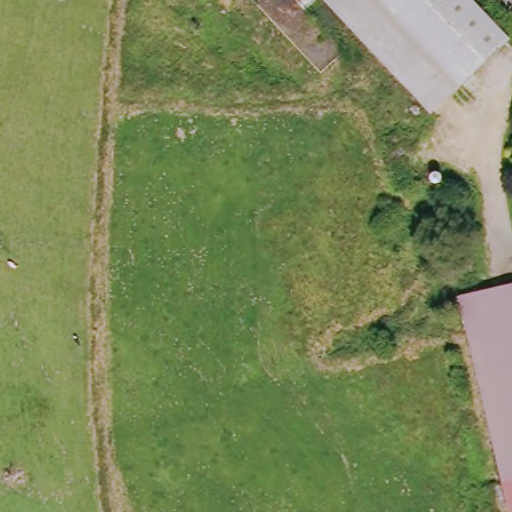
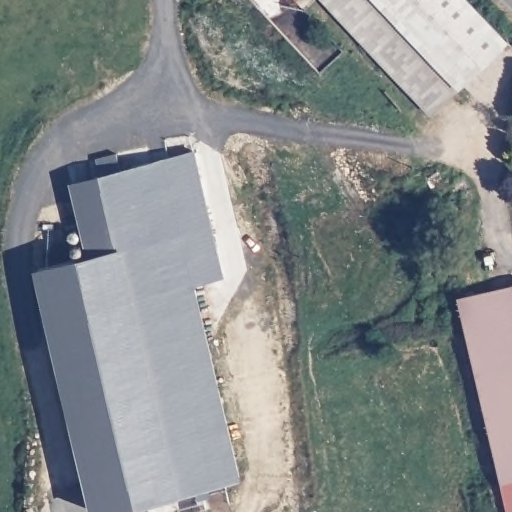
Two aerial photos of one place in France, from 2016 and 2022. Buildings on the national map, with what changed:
unchanged [(314,0),(461,0),(500,41),(423,115),(314,0)]
new [(90,254),(72,183),(195,156),(223,277),(194,283),(240,480),(180,493),(99,512),(95,512),(36,266),(90,254)]
unchanged [(512,510),(450,301),(512,283),(512,510)]

